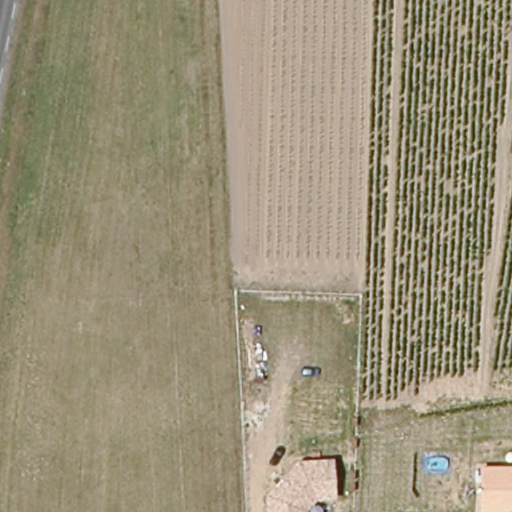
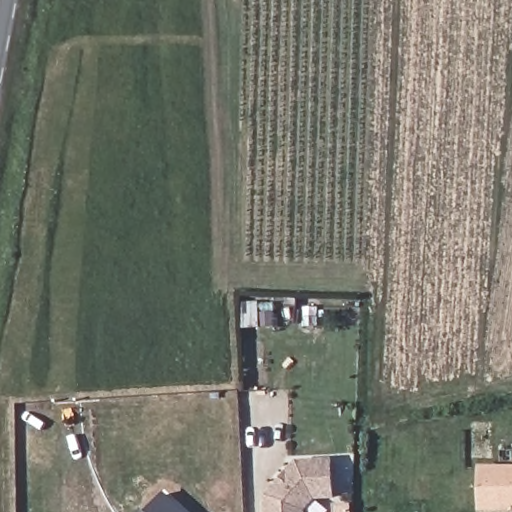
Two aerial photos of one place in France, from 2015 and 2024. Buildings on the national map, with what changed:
unchanged [(335,500),(312,501),(304,511),(304,512),(266,512),(265,493),(298,460),(335,459),(335,500)]
unchanged [(478,467),(512,467),(512,512),(478,512),(478,467)]
new [(168,494),(188,512),(152,512),(168,494)]

